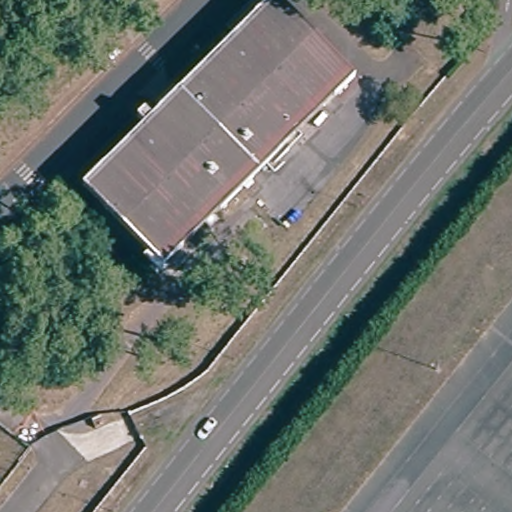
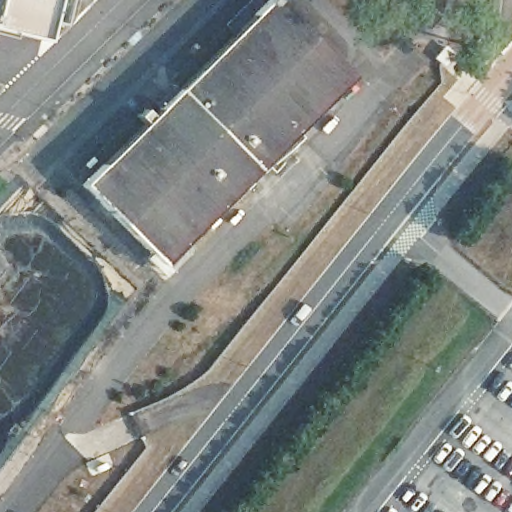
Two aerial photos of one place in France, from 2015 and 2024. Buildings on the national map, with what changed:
new [(58,0),(47,43),(0,31),(0,0),(58,0)]
unchanged [(265,0),(271,0),(348,78),(160,265),(80,183),(265,0)]

